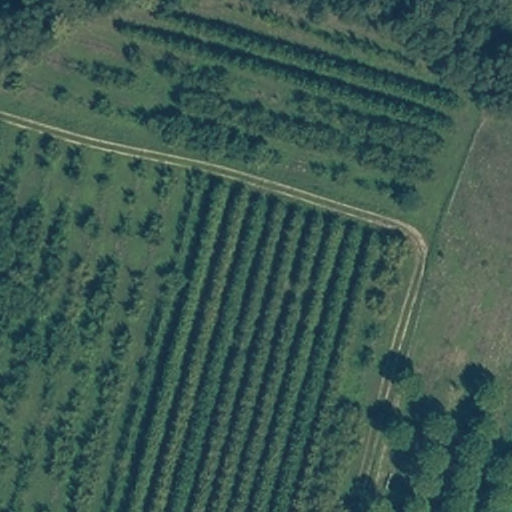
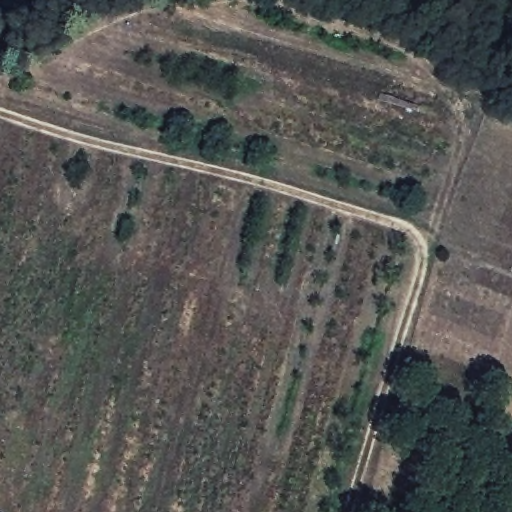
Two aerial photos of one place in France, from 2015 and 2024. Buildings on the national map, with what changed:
[]

